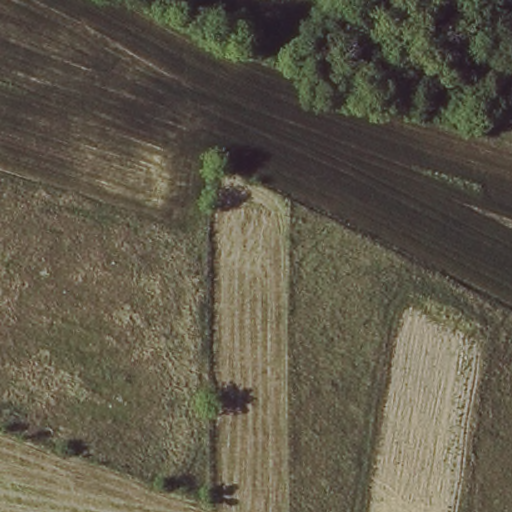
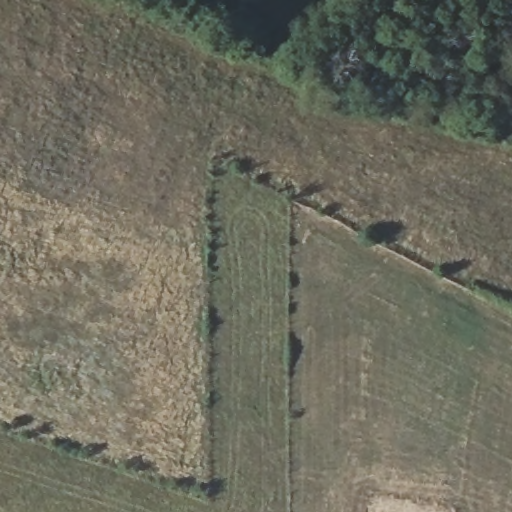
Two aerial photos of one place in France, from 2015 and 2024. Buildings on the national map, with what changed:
[]

